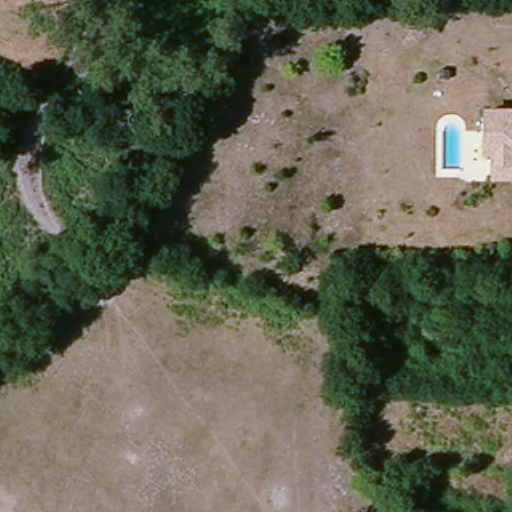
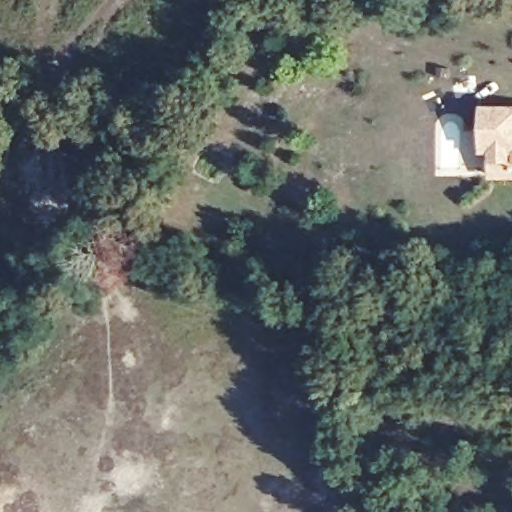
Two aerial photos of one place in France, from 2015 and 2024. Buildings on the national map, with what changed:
unchanged [(496,130),(487,129),(488,107),(512,108),(512,172),(495,172),(496,130)]

